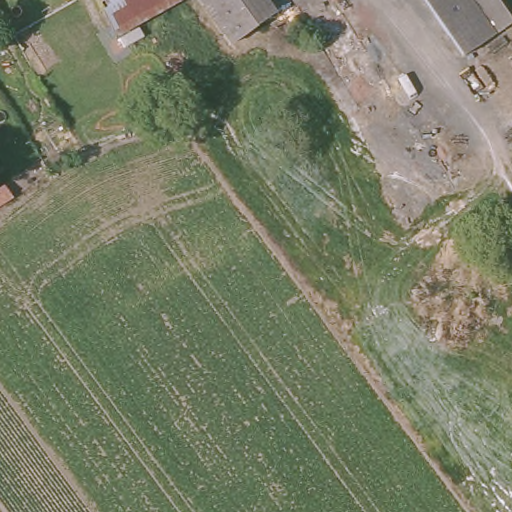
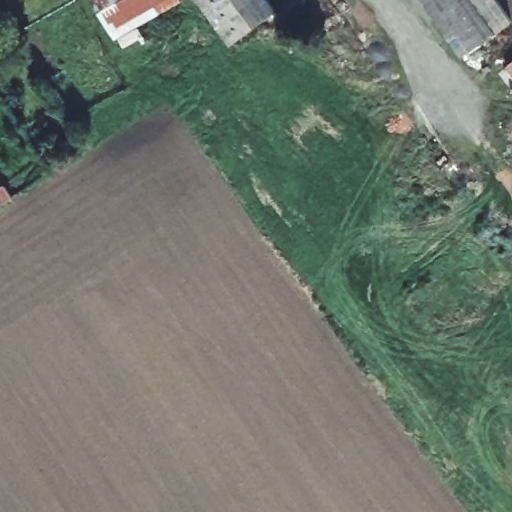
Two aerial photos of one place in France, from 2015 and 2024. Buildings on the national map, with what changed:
unchanged [(109,35),(89,0),(172,0),(109,35)]
unchanged [(195,1),(194,0),(197,0),(195,1)]
unchanged [(272,17),(227,48),(195,1),(197,0),(260,0),(272,17)]
unchanged [(508,21),(454,58),(415,0),(494,0),(508,21)]
unchanged [(27,71),(9,41),(39,24),(62,65),(34,83),(27,71)]
unchanged [(7,204),(5,205),(0,209),(0,194),(1,195),(7,204)]

